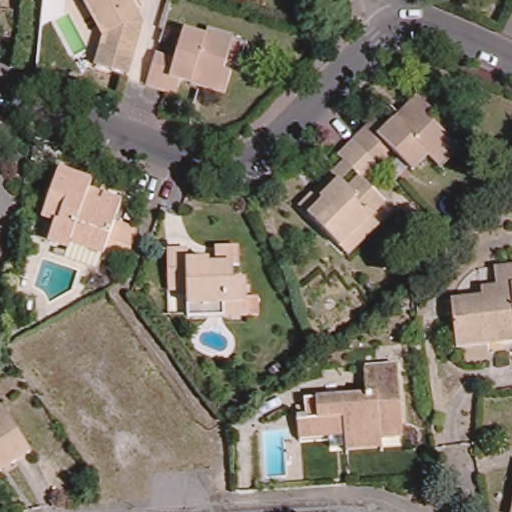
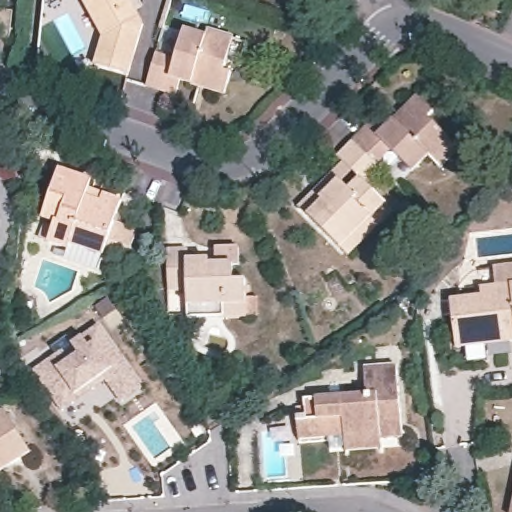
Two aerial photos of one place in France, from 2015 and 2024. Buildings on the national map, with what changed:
unchanged [(81,0),(130,0),(143,24),(128,76),(93,65),(101,37),(81,0)]
unchanged [(0,37),(0,14),(15,16),(12,38),(0,37)]
unchanged [(186,28),(211,34),(211,31),(213,28),(238,36),(251,40),(244,64),(231,60),(227,59),(225,65),(231,67),(225,90),(181,76),(176,90),(149,82),(158,51),(176,56),(186,28)]
unchanged [(447,177),(437,167),(431,161),(416,176),(395,156),(381,169),(358,145),(378,126),(389,136),(422,104),(437,119),(433,124),(456,148),(466,158),(447,177)]
unchanged [(348,258),(341,252),(311,221),(301,211),(348,166),(341,160),(358,145),(381,169),(386,173),(371,188),(389,207),(374,221),(381,228),(348,258)]
unchanged [(107,254),(101,268),(67,255),(71,244),(53,237),(58,219),(46,213),(63,168),(130,192),(120,219),(141,227),(128,262),(107,254)]
unchanged [(246,325),(221,323),(186,320),(188,309),(188,294),(169,292),(173,253),(192,254),(191,263),(219,265),(221,256),(245,259),(243,275),(238,274),(236,289),(250,291),(248,307),(260,308),(258,326),(246,325)]
unchanged [(456,341),(453,320),(452,306),(476,303),(483,303),(482,293),(496,291),(494,271),(512,269),(512,346),(494,348),(458,352),(456,341)]
new [(143,388),(123,403),(105,380),(61,411),(33,369),(72,343),(83,336),(99,325),(143,388)]
unchanged [(348,452),(346,436),(304,439),(301,416),(309,415),(309,399),(368,394),(366,366),(400,364),(406,436),(381,437),(382,450),(348,452)]
unchanged [(0,423),(9,417),(34,455),(0,477),(0,423)]
unchanged [(510,511),(512,502),(512,512),(510,511)]

